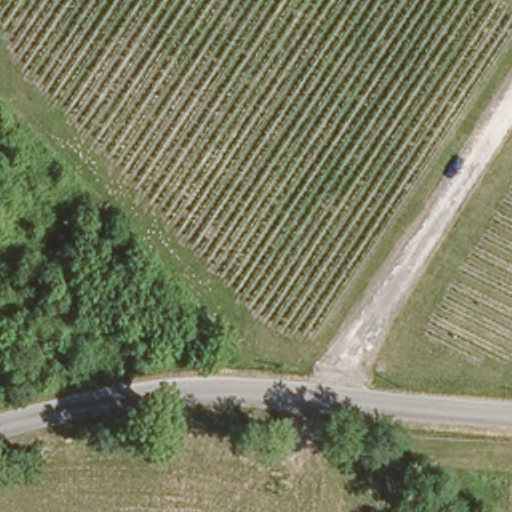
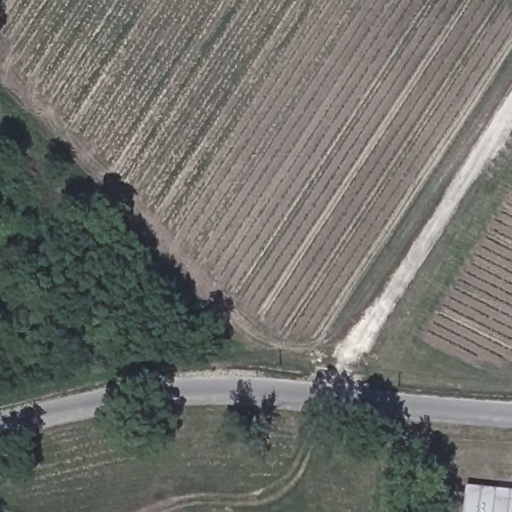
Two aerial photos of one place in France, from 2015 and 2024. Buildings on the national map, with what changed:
new [(470,485),(512,490),(512,512),(467,512),(470,485)]

